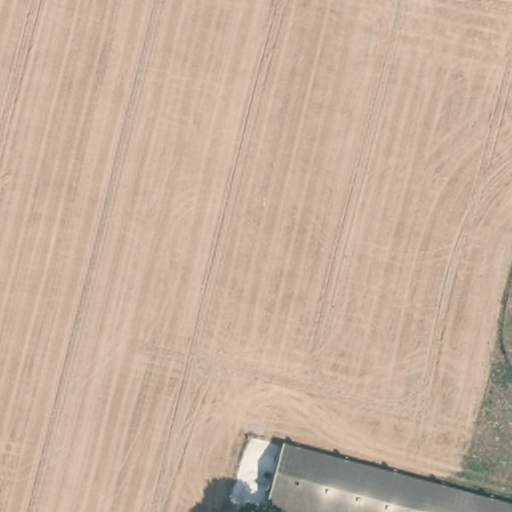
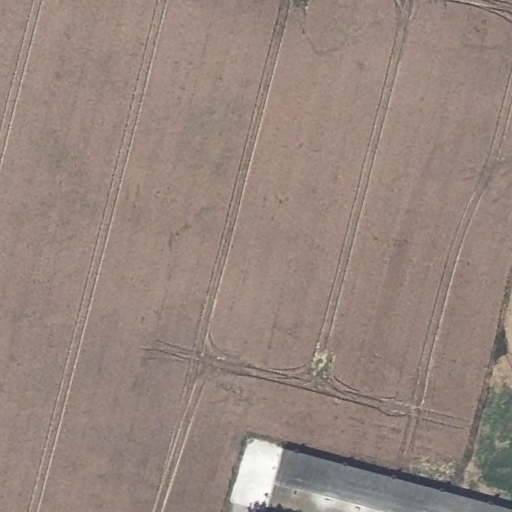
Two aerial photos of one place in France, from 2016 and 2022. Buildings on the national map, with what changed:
unchanged [(270,501),(285,445),(497,512),(305,512),(270,501)]

